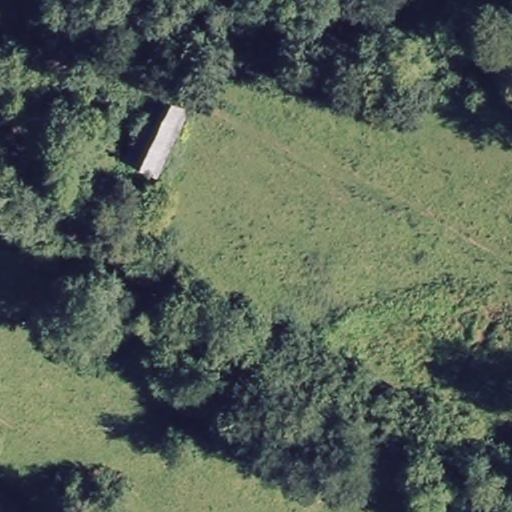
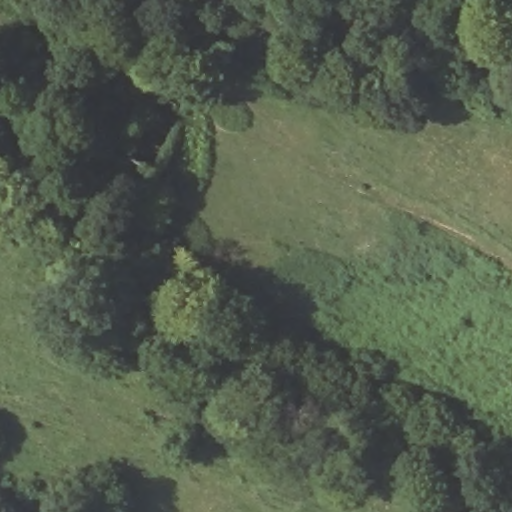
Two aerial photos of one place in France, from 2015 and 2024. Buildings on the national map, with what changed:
unchanged [(153,175),(122,161),(152,102),(183,117),(153,175)]

